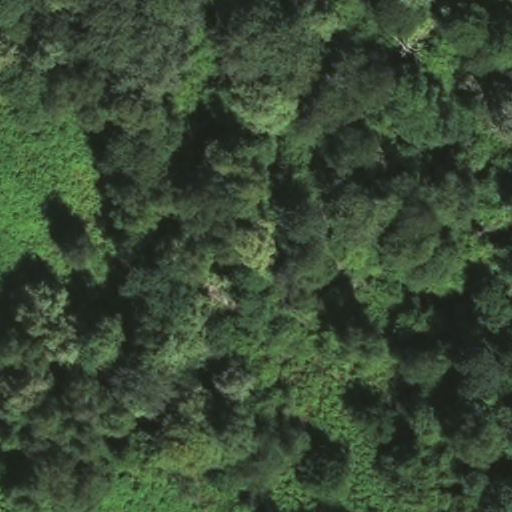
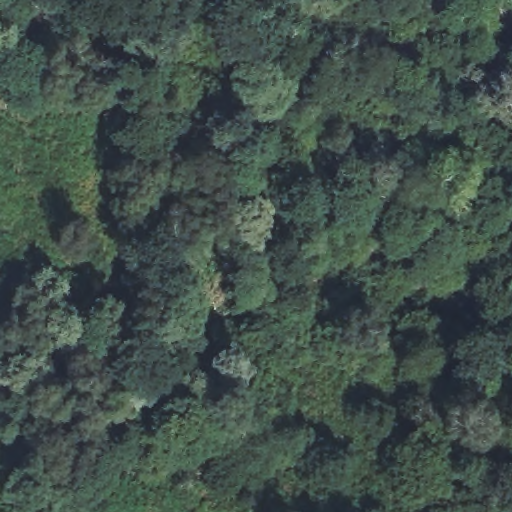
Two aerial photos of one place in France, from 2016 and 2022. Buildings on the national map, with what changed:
[]

